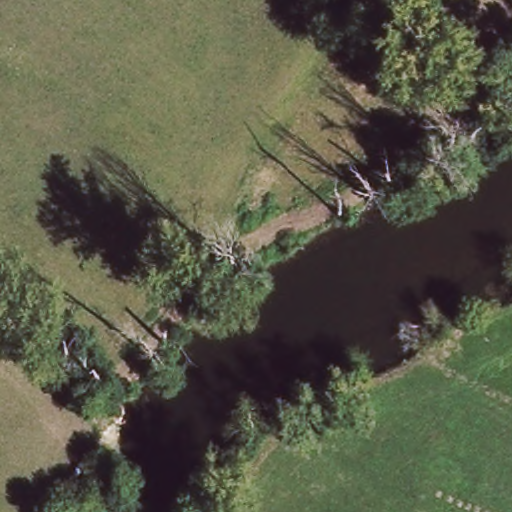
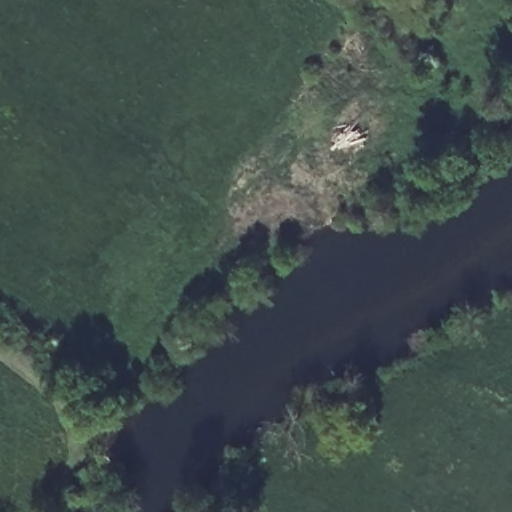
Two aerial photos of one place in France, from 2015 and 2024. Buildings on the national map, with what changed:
unchanged [(113,395),(138,410),(128,422),(106,411),(113,395)]

